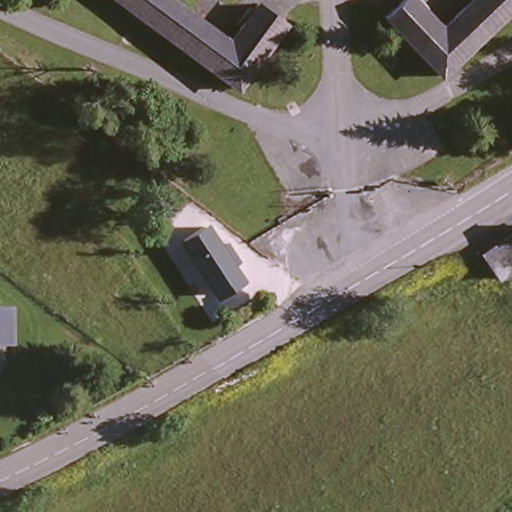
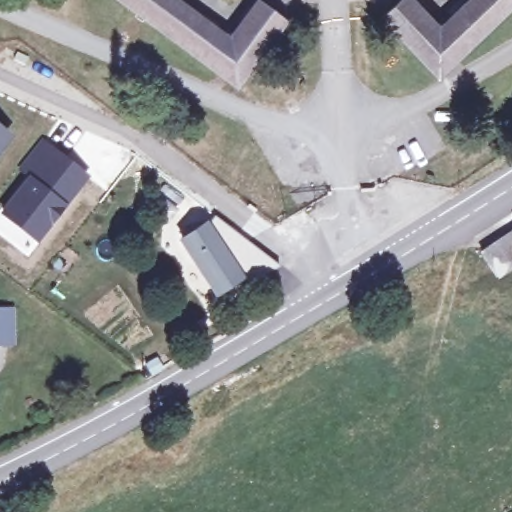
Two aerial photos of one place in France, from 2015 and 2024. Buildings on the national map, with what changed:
unchanged [(257,0),(260,0),(287,20),(237,84),(123,0),(182,0),(230,36),(257,0)]
unchanged [(404,0),(426,0),(447,23),(472,0),(512,0),(512,10),(447,72),(390,12),(404,0)]
new [(0,150),(0,123),(12,133),(0,150)]
new [(42,136),(91,176),(67,205),(26,174),(16,166),(42,136)]
new [(67,205),(36,242),(0,213),(0,208),(26,174),(67,205)]
unchanged [(154,206),(164,196),(186,215),(176,226),(154,206)]
unchanged [(512,225),(512,262),(496,272),(480,247),(512,225)]
unchanged [(249,282),(228,295),(193,241),(213,229),(248,280),(249,282)]
unchanged [(6,315),(4,344),(0,344),(0,314),(3,314),(6,315)]

